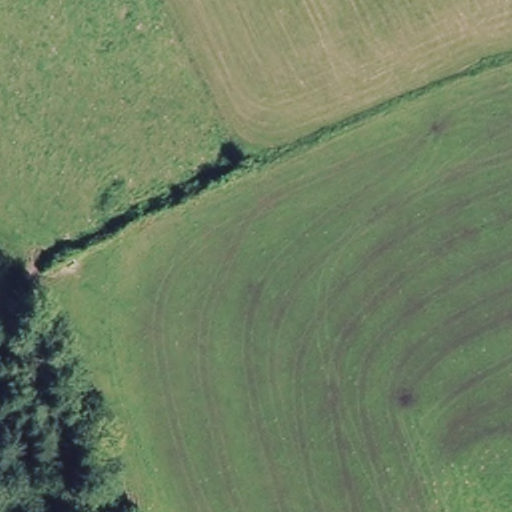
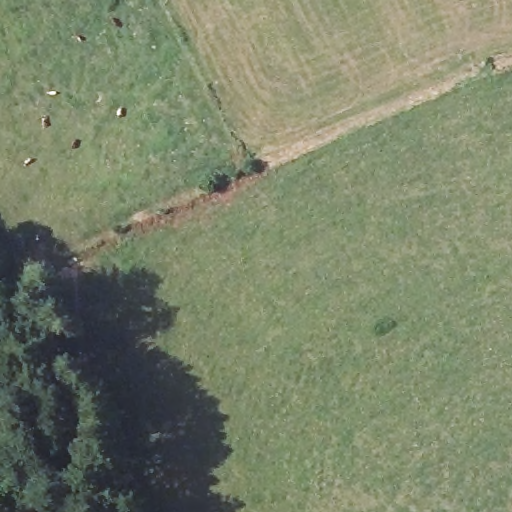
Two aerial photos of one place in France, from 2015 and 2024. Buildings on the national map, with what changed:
[]

